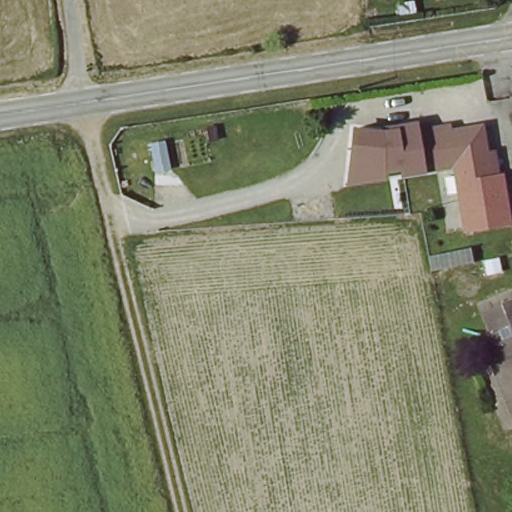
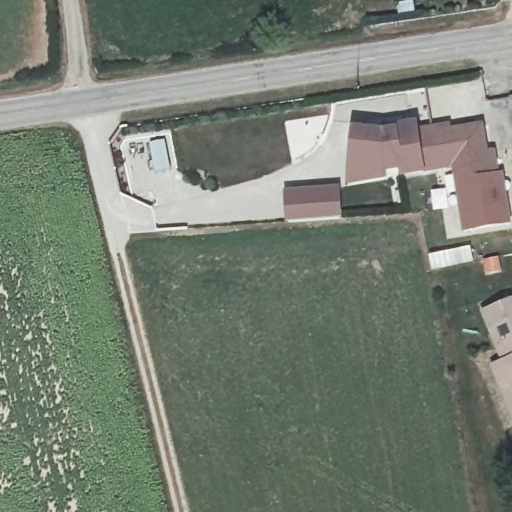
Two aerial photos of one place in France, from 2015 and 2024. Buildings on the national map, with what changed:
unchanged [(347,188),(349,162),(351,133),(380,135),(392,132),(391,130),(412,126),(413,133),(429,130),(437,168),(401,176),(400,169),(383,172),(385,180),(347,188)]
unchanged [(445,127),(446,132),(461,128),(467,155),(487,151),(495,149),(500,172),(511,221),(466,230),(452,165),(437,168),(429,130),(445,127)]
new [(343,186),(343,220),(286,222),(285,190),(343,186)]
unchanged [(512,299),(512,407),(495,365),(507,359),(486,311),(512,299)]

